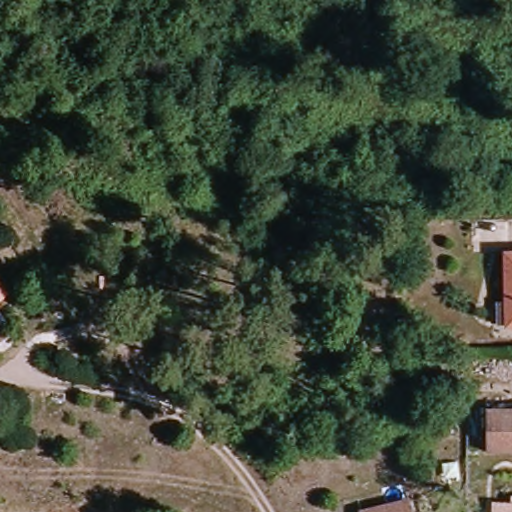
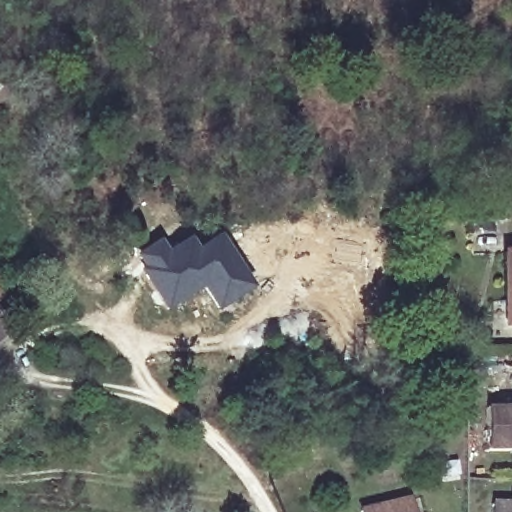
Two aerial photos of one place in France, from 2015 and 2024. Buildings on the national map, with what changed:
new [(217,307),(201,282),(164,307),(142,272),(145,270),(137,256),(158,244),(166,256),(188,242),(196,254),(217,241),(248,287),(217,307)]
unchanged [(14,337),(0,348),(0,319),(14,337)]
unchanged [(486,412),(512,411),(512,453),(490,455),(486,412)]
unchanged [(421,512),(367,512),(417,500),(421,512)]

